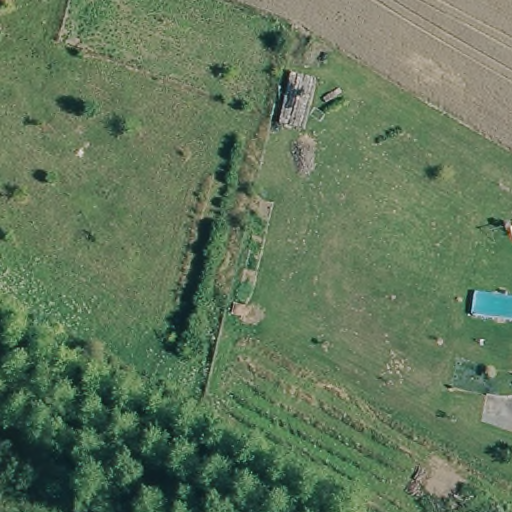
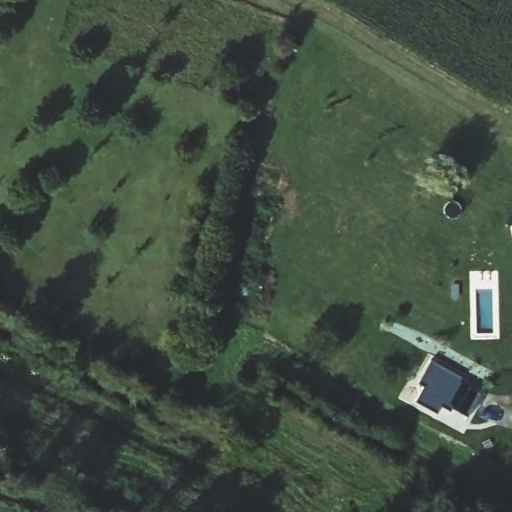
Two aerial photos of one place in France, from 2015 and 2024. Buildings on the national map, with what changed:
new [(419,403),(427,364),(454,370),(453,373),(460,375),(457,389),(473,392),(468,413),(419,403)]

